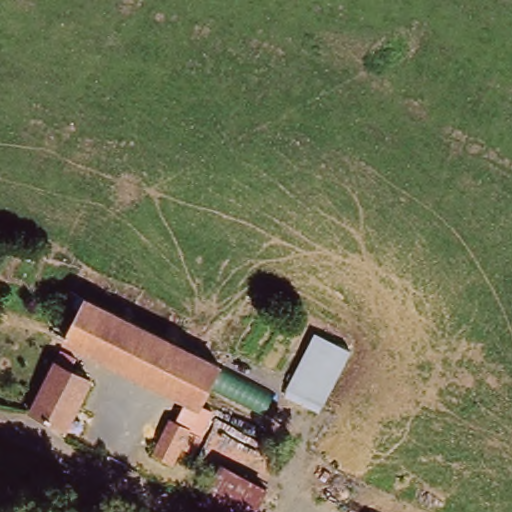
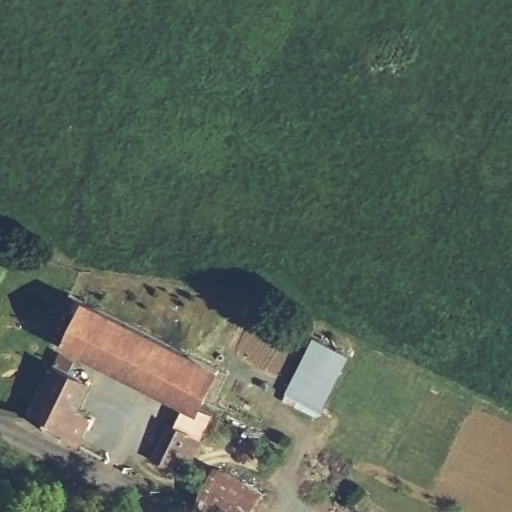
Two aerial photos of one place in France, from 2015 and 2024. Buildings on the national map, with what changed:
unchanged [(195,410),(65,346),(85,306),(215,370),(195,410)]
unchanged [(283,393),(313,337),(350,355),(321,410),(283,393)]
unchanged [(31,413),(53,366),(89,383),(66,430),(31,413)]
unchanged [(185,438),(195,445),(188,459),(175,454),(167,467),(150,458),(166,425),(186,435),(185,438)]
unchanged [(204,500),(223,467),(267,491),(256,512),(226,512),(204,500)]

